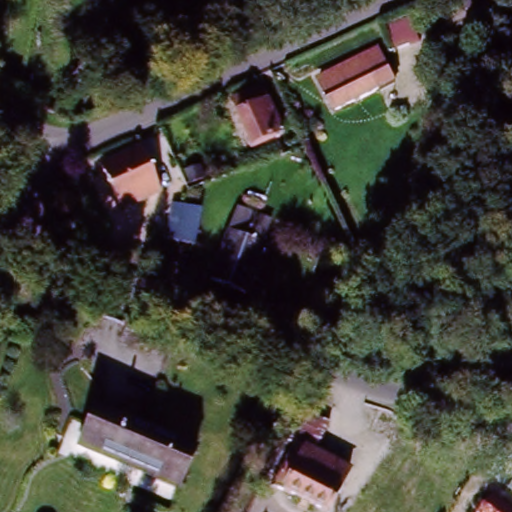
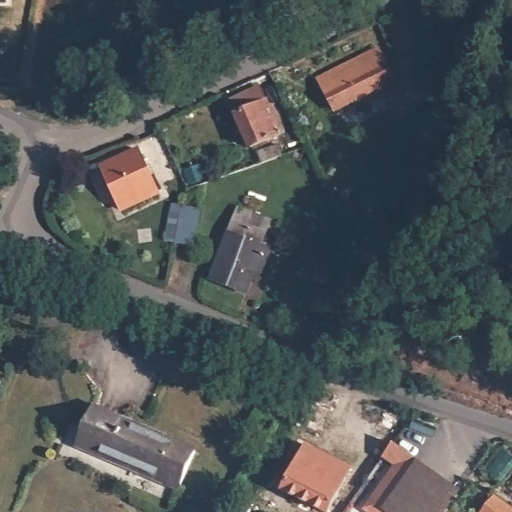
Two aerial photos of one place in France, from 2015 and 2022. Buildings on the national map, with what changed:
unchanged [(321,77),(365,53),(376,75),(382,87),(338,111),(332,99),(321,77)]
unchanged [(231,111),(262,98),(267,111),(282,144),(248,158),(233,125),(237,124),(231,111)]
unchanged [(295,144),(302,141),(307,151),(300,152),(295,144)]
unchanged [(265,165),(261,154),(280,147),(284,158),(265,165)]
unchanged [(119,215),(100,173),(135,156),(154,199),(119,215)]
unchanged [(202,210),(196,247),(178,245),(170,243),(176,206),(185,207),(202,210)]
unchanged [(235,211),(274,224),(264,253),(260,251),(225,238),(235,211)]
unchanged [(207,281),(225,238),(260,251),(245,295),(207,281)]
unchanged [(193,448),(177,484),(77,444),(92,408),(193,448)]
unchanged [(287,446),(302,421),(315,428),(302,453),(340,471),(320,512),(312,512),(276,494),(267,490),(287,446)]
new [(390,438),(414,457),(455,488),(436,512),(371,512),(360,503),(391,462),(379,453),(390,438)]
new [(503,512),(476,512),(486,499),(503,512)]

